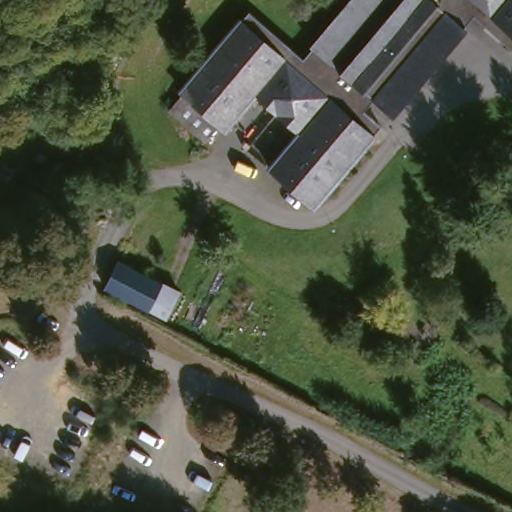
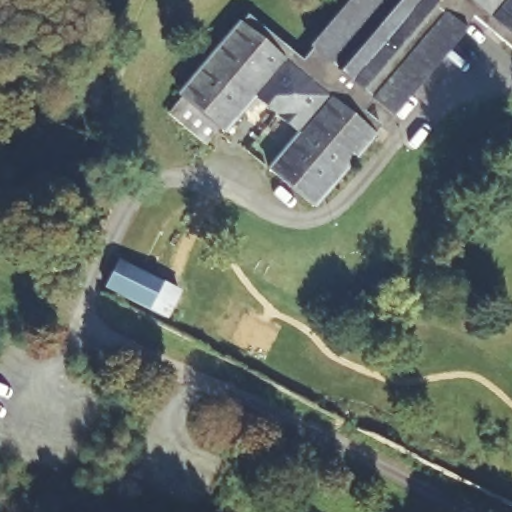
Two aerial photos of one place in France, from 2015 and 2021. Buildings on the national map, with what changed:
unchanged [(512,45),(480,17),(318,205),(275,170),(305,135),(259,96),(230,130),(225,127),(210,144),(174,112),(257,13),(308,56),(357,0),(512,0),(512,45)]
unchanged [(170,319),(154,310),(110,288),(122,261),(146,272),(167,283),(185,290),(170,319)]

